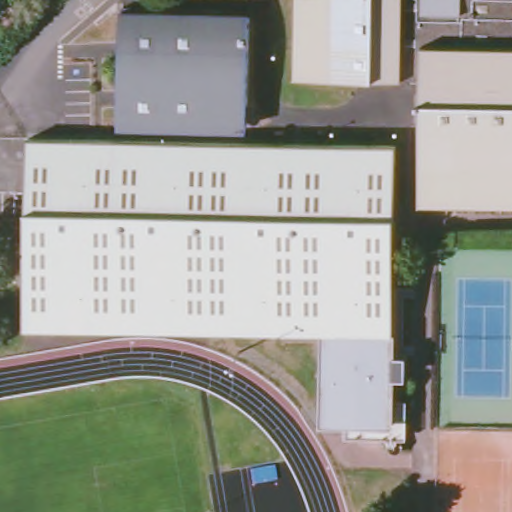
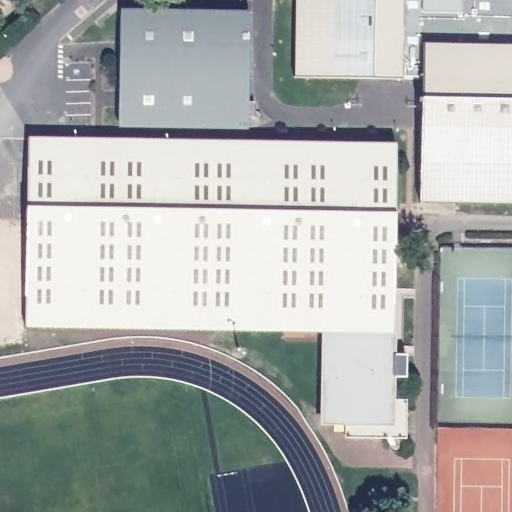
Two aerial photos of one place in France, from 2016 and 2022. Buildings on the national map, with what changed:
unchanged [(421,198),(422,77),(297,76),(298,0),(512,0),(512,199),(421,198)]
unchanged [(122,14),(122,5),(141,5),(141,14),(251,16),(248,120),(120,117),(122,14)]
unchanged [(325,421),(326,330),(26,322),(29,135),(397,142),(393,422),(325,421)]

